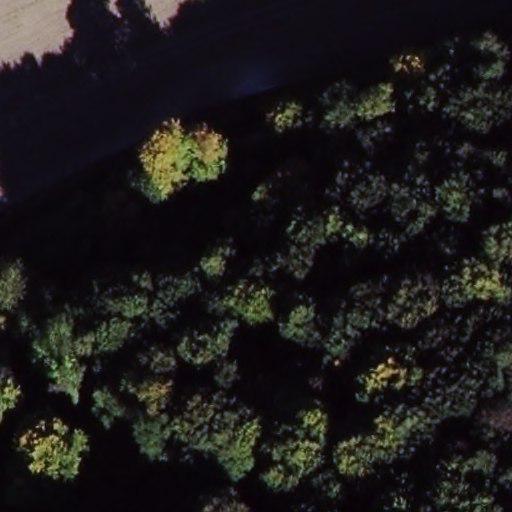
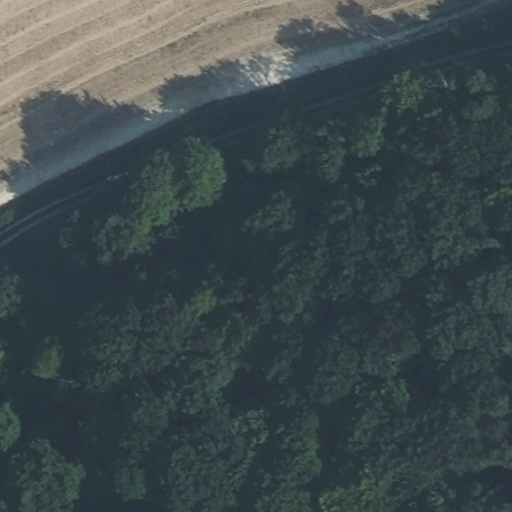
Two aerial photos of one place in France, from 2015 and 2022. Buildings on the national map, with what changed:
[]

